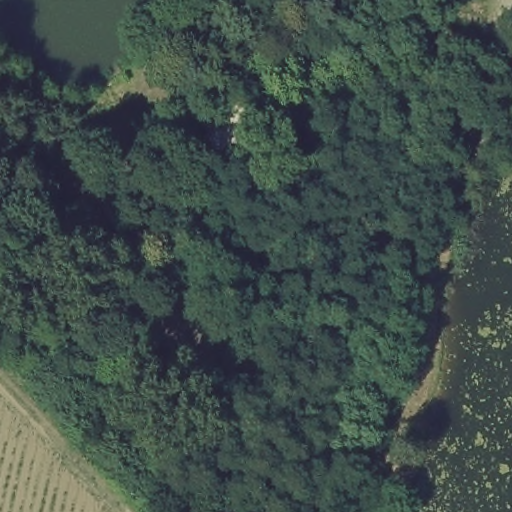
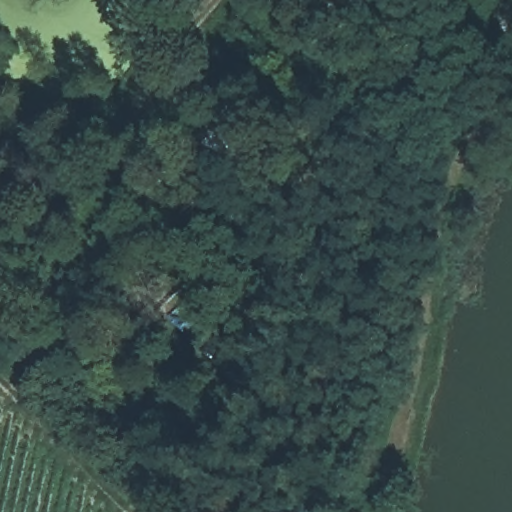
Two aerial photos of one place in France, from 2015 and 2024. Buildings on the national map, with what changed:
unchanged [(242,165),(205,149),(226,102),(264,119),(242,165)]

